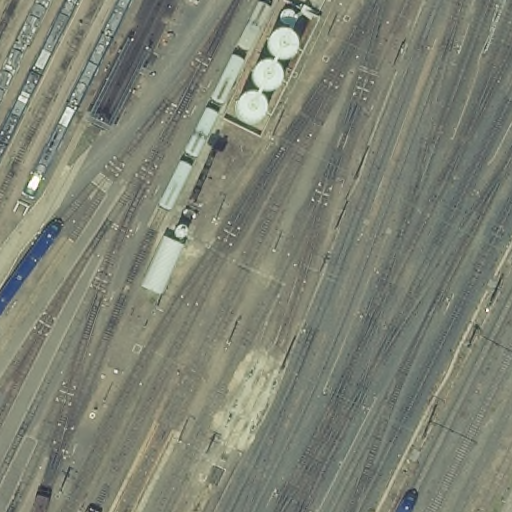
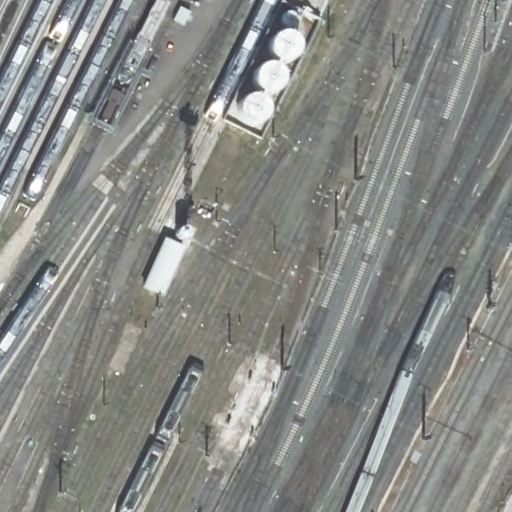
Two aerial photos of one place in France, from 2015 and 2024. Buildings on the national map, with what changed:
unchanged [(280,0),(308,0),(304,10),(323,18),(262,139),(220,119),(280,0)]

